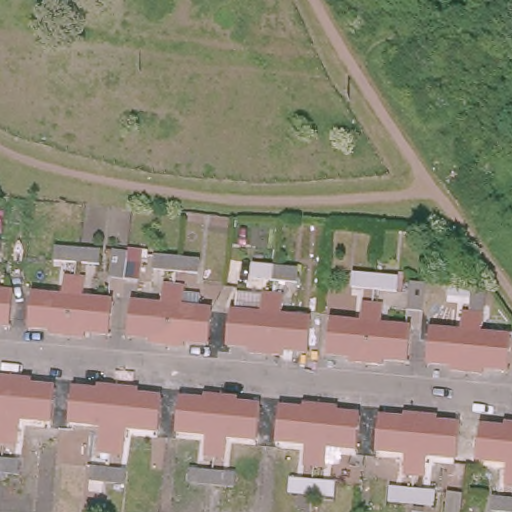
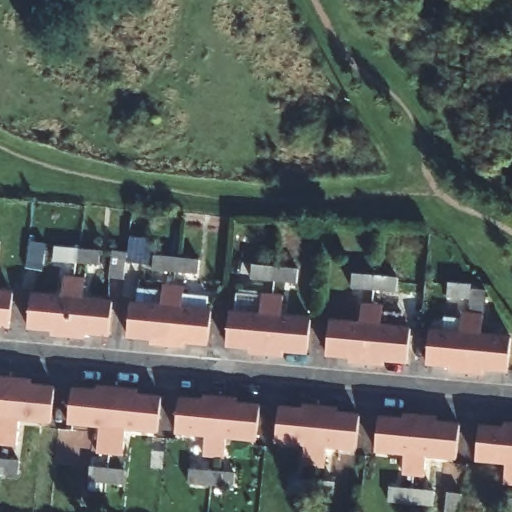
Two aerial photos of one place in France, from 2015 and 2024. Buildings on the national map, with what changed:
unchanged [(92,262),(74,261),(56,260),(57,245),(76,247),(92,247),(92,262)]
unchanged [(191,270),(174,269),(157,268),(157,255),(176,256),(192,257),(191,270)]
unchanged [(101,256),(113,257),(110,285),(99,284),(101,256)]
unchanged [(294,280),(274,278),(258,277),(258,264),(276,265),(294,267),(294,280)]
unchanged [(392,288),(374,287),(356,286),(356,272),(376,274),(392,275),(392,288)]
unchanged [(30,294),(59,297),(61,277),(73,278),(69,337),(51,336),(52,330),(28,327),(30,294)]
unchanged [(85,332),(85,338),(69,337),(73,278),(85,280),(84,299),(96,300),(98,300),(114,302),(111,335),(93,333),(85,332)]
unchanged [(474,296),(455,294),(456,281),(476,283),(489,285),(489,297),(474,296)]
unchanged [(130,302),(161,306),(163,286),(173,287),(168,346),(152,344),(153,338),(128,336),(130,302)]
unchanged [(185,341),(184,347),(168,346),(173,287),(184,287),(183,307),(213,310),(210,343),(185,341)]
unchanged [(11,326),(0,325),(0,292),(14,293),(11,326)]
unchanged [(231,312),(236,312),(238,292),(273,295),(269,354),(251,352),(252,347),(228,345),(231,312)]
unchanged [(285,350),(284,355),(269,354),(273,295),(284,296),(283,316),(313,318),(310,352),(285,350)]
unchanged [(331,320),(361,322),(363,302),(374,303),(369,362),(351,361),(352,355),(328,353),(331,320)]
unchanged [(386,358),(386,364),(369,362),(374,303),(384,305),(383,324),(414,327),(411,360),(386,358)]
unchanged [(432,328),(461,332),(463,312),(473,312),(469,371),(452,370),(452,364),(429,362),(432,328)]
unchanged [(486,367),(486,372),(469,371),(473,312),(484,313),(483,333),(512,335),(512,352),(511,369),(486,367)]
unchanged [(6,444),(0,443),(0,378),(13,378),(6,444)]
unchanged [(18,445),(6,444),(13,378),(33,381),(33,387),(38,387),(58,389),(54,422),(35,421),(21,420),(18,445)]
unchanged [(101,452),(103,427),(72,423),(74,391),(98,392),(99,386),(120,388),(114,454),(101,452)]
unchanged [(120,388),(141,390),(141,397),(166,399),(162,432),(131,429),(128,456),(114,454),(120,388)]
unchanged [(206,455),(208,435),(178,432),(181,400),(204,402),(205,396),(223,397),(216,456),(206,455)]
unchanged [(223,397),(239,398),(238,405),(263,407),(260,440),(231,437),(228,457),(216,456),(223,397)]
unchanged [(305,411),(306,405),(323,406),(318,465),(306,463),(308,444),(278,441),(281,409),(305,411)]
unchanged [(360,448),(329,446),(328,466),(318,465),(323,406),(339,407),(339,414),(363,417),(360,448)]
unchanged [(405,420),(406,413),(423,415),(417,473),(407,472),(409,453),(379,450),(382,418),(405,420)]
unchanged [(429,475),(417,473),(423,415),(439,417),(439,422),(448,423),(463,426),(459,457),(445,456),(431,455),(429,475)]
unchanged [(506,429),(507,423),(512,424),(512,482),(508,482),(509,462),(479,458),(482,427),(506,429)]
unchanged [(44,442),(43,458),(32,457),(33,441),(44,442)]
unchanged [(4,471),(0,470),(0,455),(5,456),(23,457),(22,472),(4,471)]
unchanged [(131,481),(113,480),(93,477),(94,464),(113,466),(131,467),(131,481)]
unchanged [(231,490),(213,488),(196,487),(197,472),(215,475),(231,476),(231,490)]
unchanged [(453,477),(452,492),(447,492),(442,492),(443,476),(453,477)]
unchanged [(330,498),(314,497),(296,496),(297,482),(316,483),(331,485),(330,498)]
unchanged [(429,507),(414,506),(397,504),(398,490),(415,492),(431,494),(429,507)]
unchanged [(497,497),(512,499),(512,512),(496,512),(497,497)]

